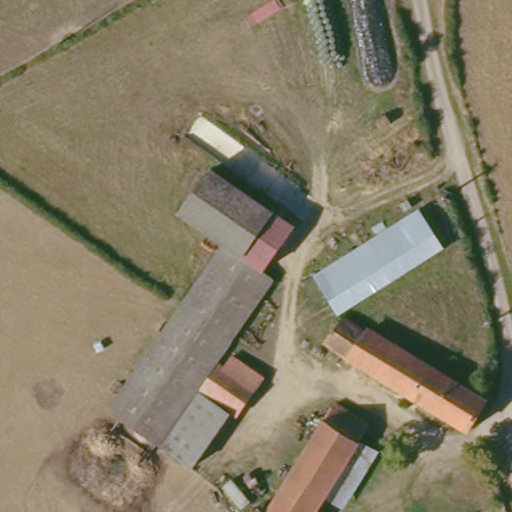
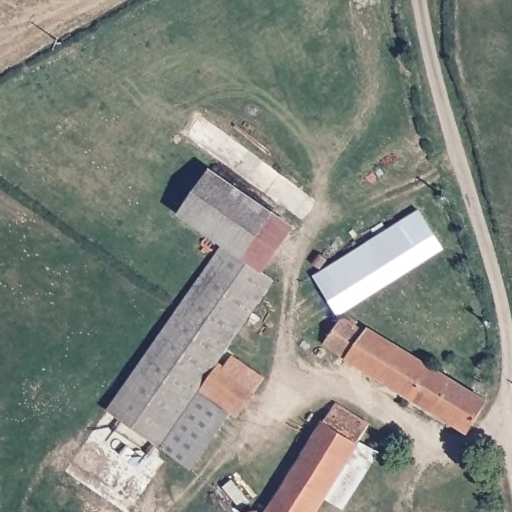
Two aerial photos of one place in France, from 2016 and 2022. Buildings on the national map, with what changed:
unchanged [(221,240),(181,211),(210,170),(290,227),(260,269),(221,240)]
unchanged [(332,313),(311,275),(413,210),(441,249),(332,313)]
unchanged [(221,240),(260,269),(272,278),(212,364),(219,370),(231,354),(260,374),(187,468),(104,408),(221,240)]
unchanged [(486,397),(468,433),(324,344),(342,312),(486,397)]
unchanged [(324,494),(313,512),(265,512),(330,403),(366,423),(355,441),(324,494)]
unchanged [(355,441),(374,453),(343,506),(324,494),(355,441)]

